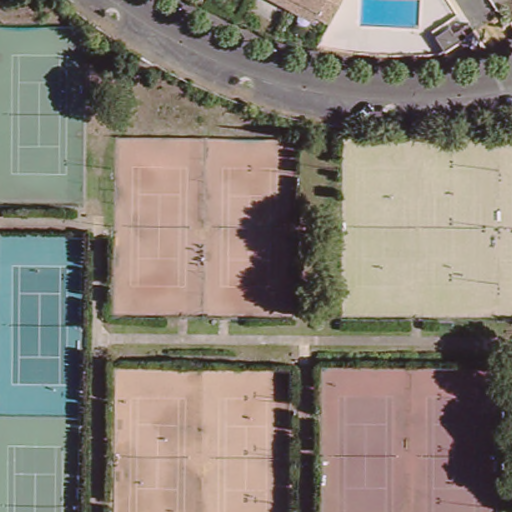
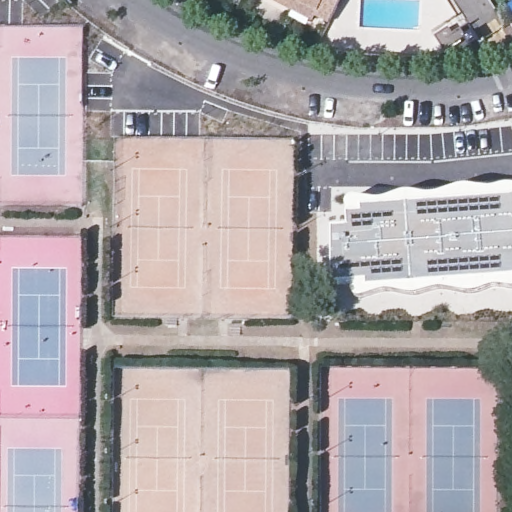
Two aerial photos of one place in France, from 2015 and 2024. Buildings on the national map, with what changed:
unchanged [(293,3),(288,0),(341,0),(332,17),(319,10),(316,14),(293,3)]
unchanged [(451,27),(454,33),(466,26),(471,33),(475,31),(481,39),(472,45),(466,37),(445,51),(436,36),(451,27)]
new [(349,229),(349,226),(347,208),(348,203),(353,199),(362,199),(376,201),(388,200),(395,197),(406,193),(414,194),(425,196),(437,196),(447,193),(458,189),(468,187),(474,188),(485,189),(494,190),(502,188),(510,186),(512,186),(512,289),(506,289),(494,288),(486,291),(477,294),(469,295),(459,292),(444,291),(435,291),(423,296),(415,297),(404,295),(391,292),(387,293),(363,301),(359,300),(356,298),(354,292),(354,284),(334,284),(333,230),(349,229)]

